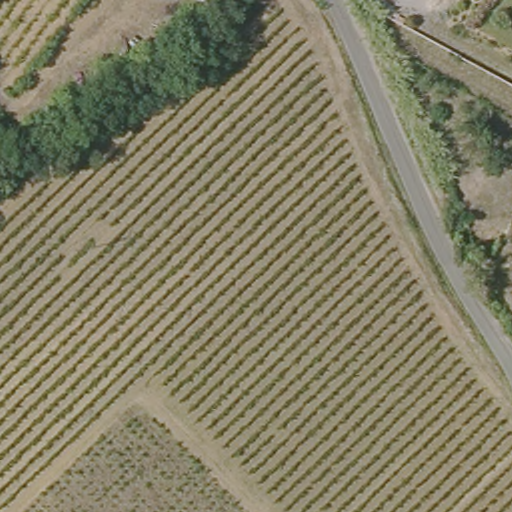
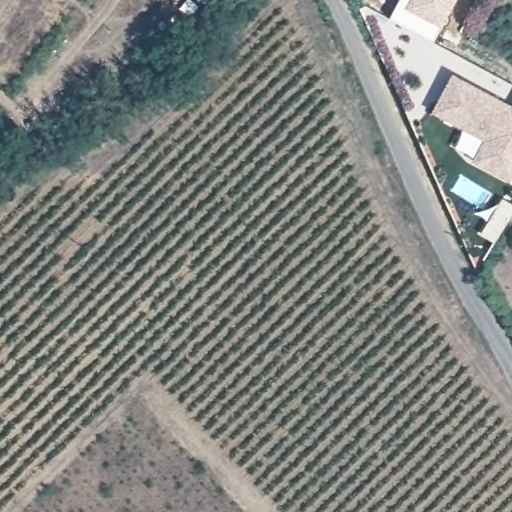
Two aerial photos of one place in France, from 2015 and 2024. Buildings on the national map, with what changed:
unchanged [(195,0),(215,0),(214,4),(195,2),(195,0)]
new [(390,16),(398,0),(455,0),(441,26),(434,40),(390,16)]
new [(510,106),(512,104),(512,167),(507,176),(473,157),(485,137),(432,108),(451,74),(510,106)]

